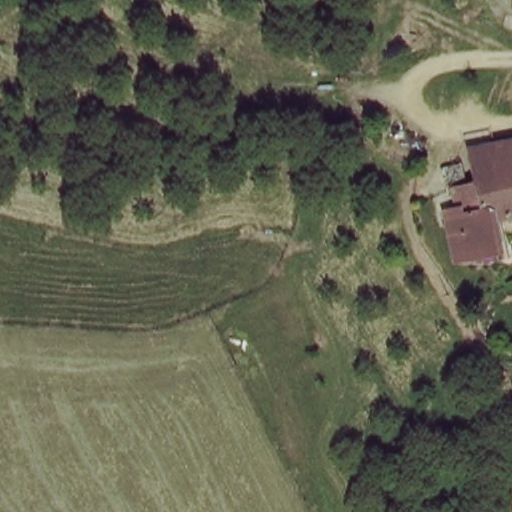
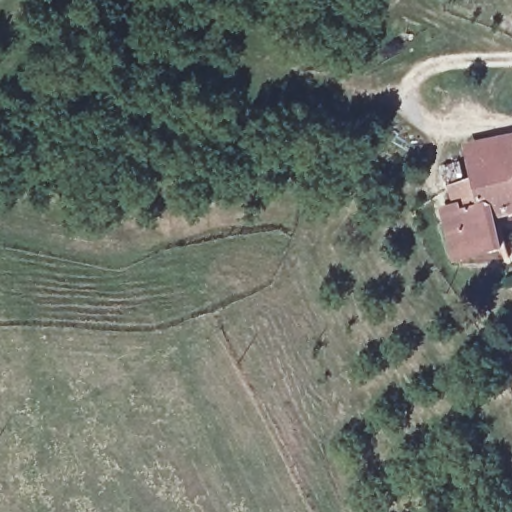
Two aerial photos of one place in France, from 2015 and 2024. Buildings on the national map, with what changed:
unchanged [(481,148),(512,139),(512,210),(495,215),(499,237),(467,244),(463,217),(460,204),(455,176),(484,166),(481,148)]

